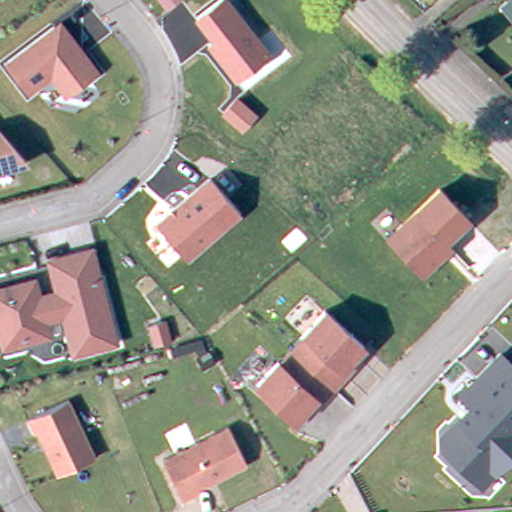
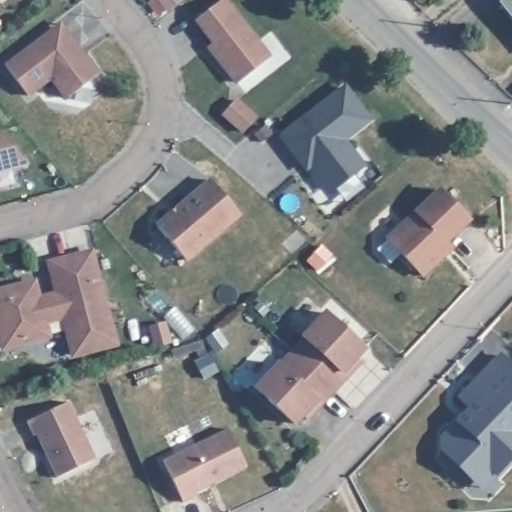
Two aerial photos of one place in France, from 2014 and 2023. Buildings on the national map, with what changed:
unchanged [(206,46),(211,43),(194,21),(222,0),(229,0),(274,55),(236,82),(206,46)]
unchanged [(503,0),(512,0),(512,14),(502,1),(503,0)]
unchanged [(61,20),(100,71),(66,99),(49,80),(28,97),(3,65),(61,20)]
new [(304,171),(277,136),(344,83),(373,120),(347,141),(368,166),(329,193),(311,167),(304,171)]
unchanged [(221,114),(239,99),(259,116),(241,133),(221,114)]
unchanged [(0,132),(28,165),(0,173),(0,132)]
unchanged [(209,180),(242,218),(188,263),(155,224),(209,180)]
unchanged [(449,242),(456,249),(424,280),(386,238),(437,185),(473,221),(449,242)]
unchanged [(71,356),(60,322),(50,324),(55,335),(3,351),(0,340),(0,285),(36,275),(43,293),(52,289),(45,262),(95,248),(120,343),(71,356)]
unchanged [(369,350),(346,371),(347,378),(329,400),(320,401),(294,425),(253,387),(279,362),(285,358),(298,344),(303,335),(326,309),(369,350)]
unchanged [(439,450),(437,433),(469,406),(456,397),(502,354),(512,364),(512,458),(481,488),(439,450)]
unchanged [(56,478),(30,421),(69,402),(94,459),(56,478)]
unchanged [(243,467),(183,499),(166,461),(226,429),(243,467)]

